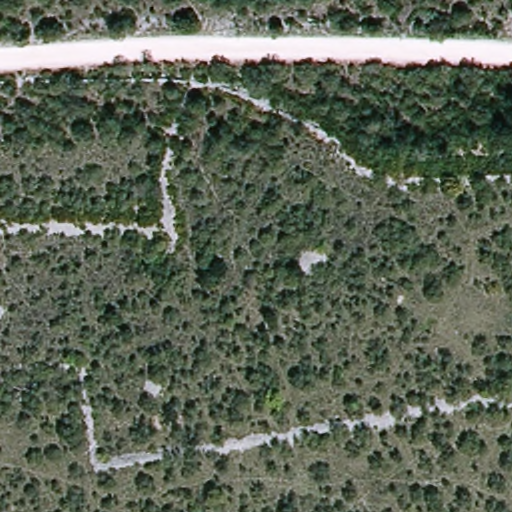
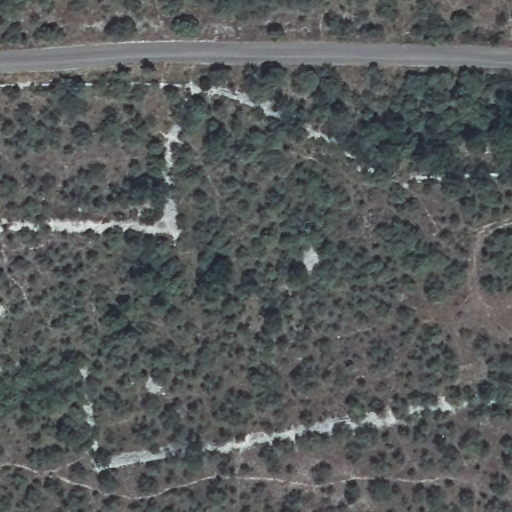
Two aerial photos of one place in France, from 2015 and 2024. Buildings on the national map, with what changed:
[]

